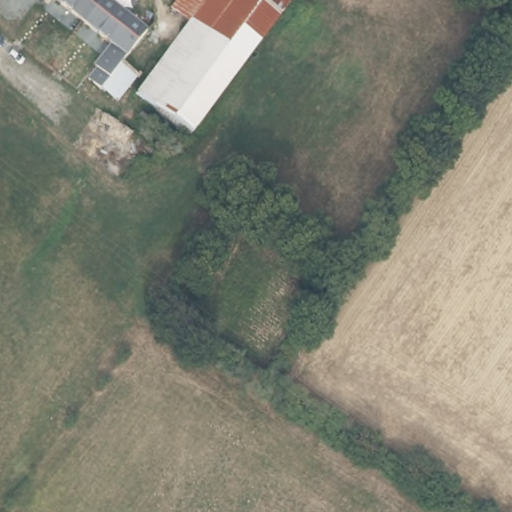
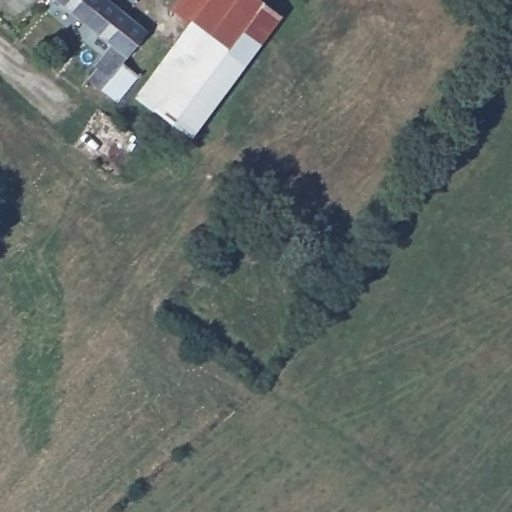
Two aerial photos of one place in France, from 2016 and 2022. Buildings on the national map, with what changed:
unchanged [(101,94),(89,84),(97,73),(95,71),(111,49),(84,27),(50,0),(103,0),(104,1),(107,4),(110,0),(121,0),(129,6),(122,15),(147,36),(121,69),(136,81),(117,106),(102,94),(101,94)]
unchanged [(136,96),(190,23),(209,37),(237,0),(260,0),(280,16),(191,136),(136,96)]
unchanged [(190,23),(171,9),(178,0),(237,0),(209,37),(190,23)]

